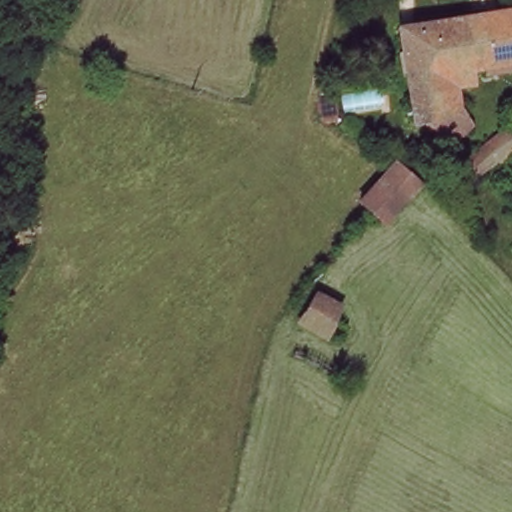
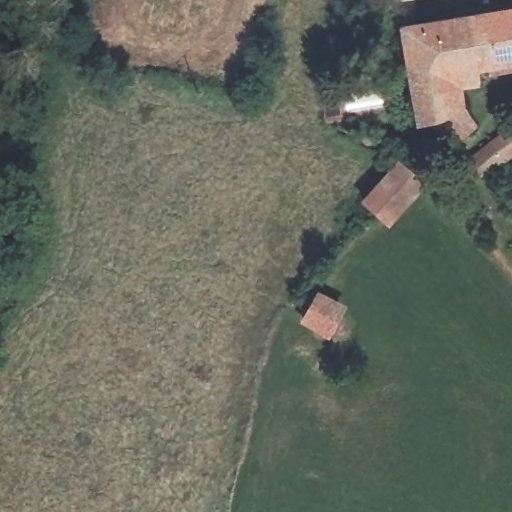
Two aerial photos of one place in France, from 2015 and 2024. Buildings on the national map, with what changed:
unchanged [(446,90),(430,95),(436,120),(428,124),(413,125),(400,43),(442,34),(512,19),(512,67),(446,80),(446,90)]
unchanged [(444,151),(428,124),(436,120),(430,95),(446,90),(451,118),(462,143),(456,146),(444,151)]
unchanged [(487,172),(474,154),(509,136),(512,142),(512,158),(487,172)]
unchanged [(357,200),(389,171),(417,197),(388,225),(357,200)]
unchanged [(343,313),(329,333),(304,316),(318,296),(343,313)]

